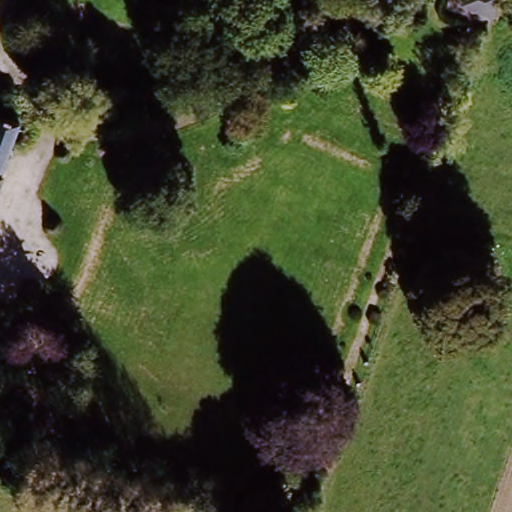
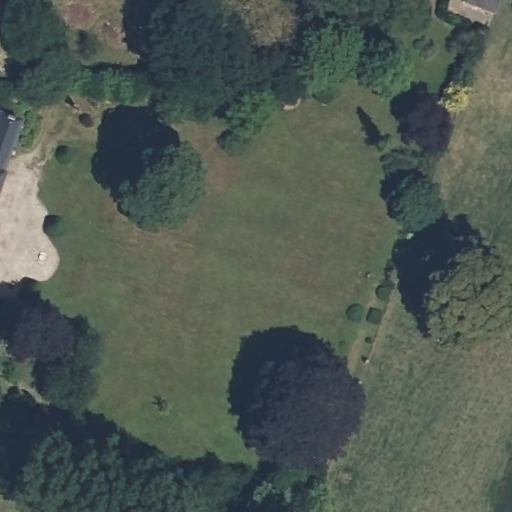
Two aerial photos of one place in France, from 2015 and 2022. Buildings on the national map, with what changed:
unchanged [(465,14),(470,1),(470,0),(501,0),(498,9),(493,24),(465,14)]
unchanged [(23,127),(0,192),(0,118),(23,127)]

